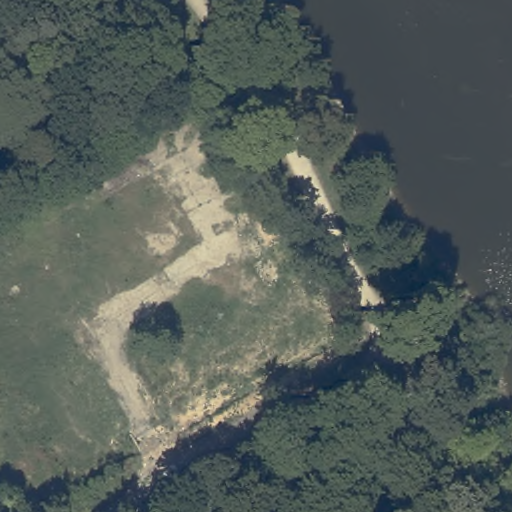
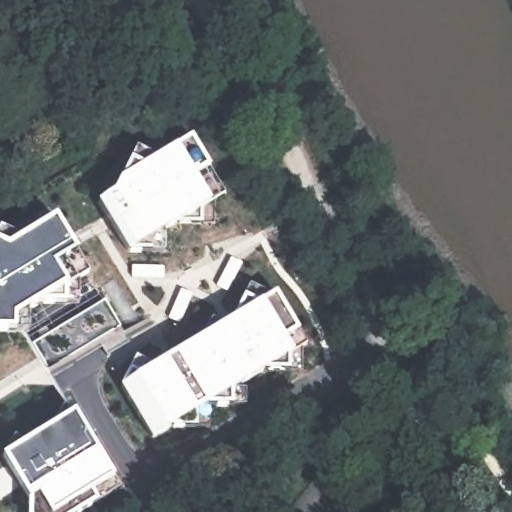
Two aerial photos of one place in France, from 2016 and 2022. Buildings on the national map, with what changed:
new [(194,178),(209,206),(133,250),(101,198),(113,192),(121,177),(134,149),(153,160),(175,147),(192,137),(211,169),(194,178)]
unchanged [(337,219),(348,212),(354,222),(342,228),(337,219)]
new [(59,267),(71,287),(14,322),(15,334),(0,333),(0,234),(16,242),(56,218),(76,256),(59,267)]
demolished [(287,311),(274,318),(255,289),(270,282),(287,311)]
new [(282,339),(293,355),(165,431),(133,377),(274,292),(297,331),(282,339)]
demolished [(212,311),(224,332),(202,346),(190,325),(212,311)]
demolished [(170,337),(178,349),(160,360),(153,347),(159,343),(170,337)]
demolished [(192,409),(204,402),(201,397),(207,393),(210,398),(228,387),(225,382),(230,380),(233,384),(252,372),(273,360),(268,352),(285,343),(308,381),(266,406),(246,418),(228,429),(210,440),(192,451),(191,452),(178,430),(175,432),(171,425),(161,408),(183,395),(192,409)]
demolished [(141,378),(130,361),(138,356),(149,373),(141,378)]
new [(98,505),(86,512),(26,512),(25,502),(0,458),(73,416),(112,482),(118,492),(98,505)]

